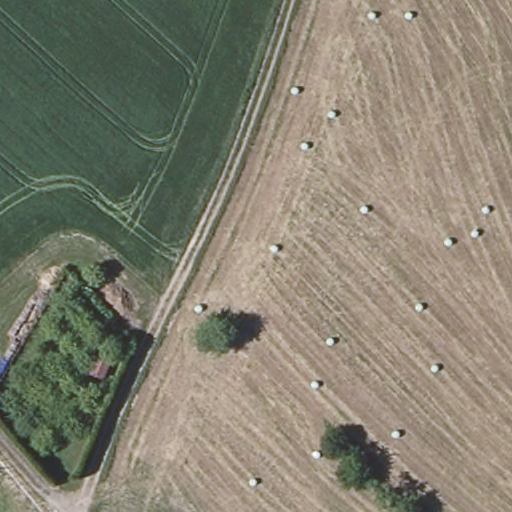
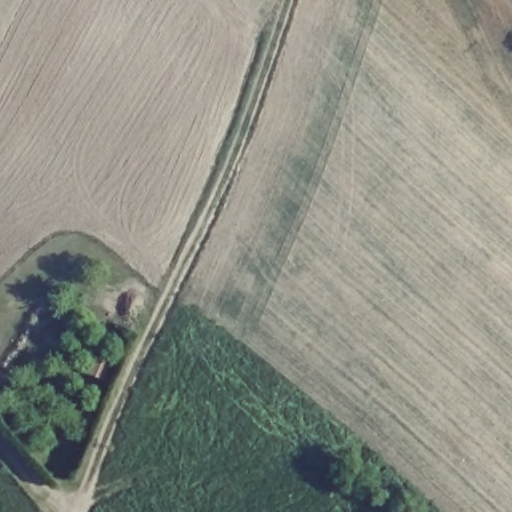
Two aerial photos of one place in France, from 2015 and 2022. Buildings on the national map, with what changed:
unchanged [(115,360),(105,387),(82,377),(95,350),(115,360)]

